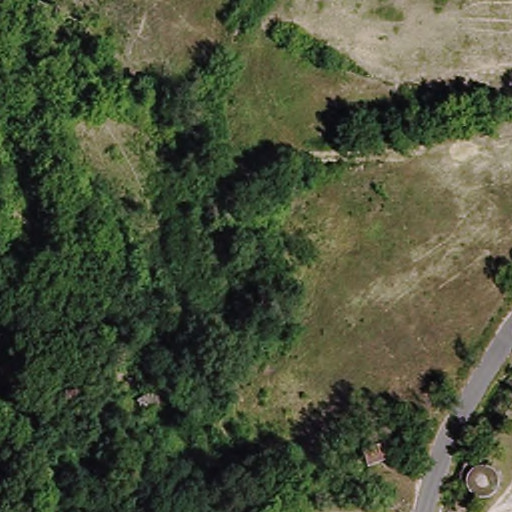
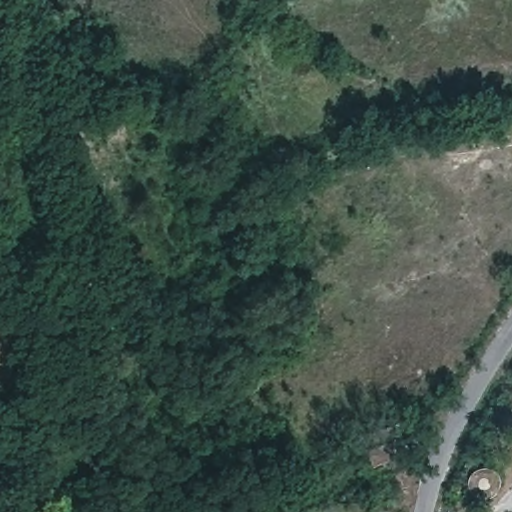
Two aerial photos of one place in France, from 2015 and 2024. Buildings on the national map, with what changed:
unchanged [(366,446),(394,437),(402,460),(371,467),(366,446)]

